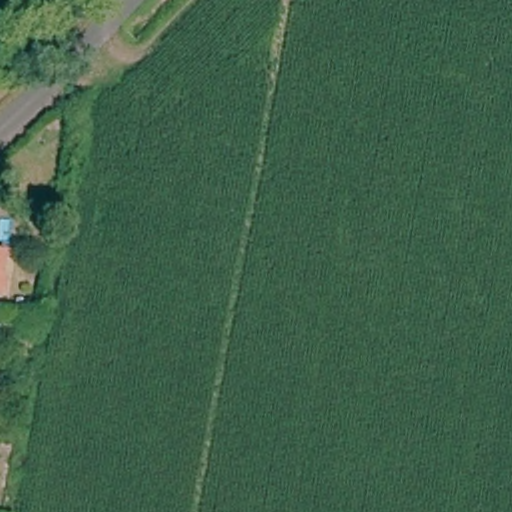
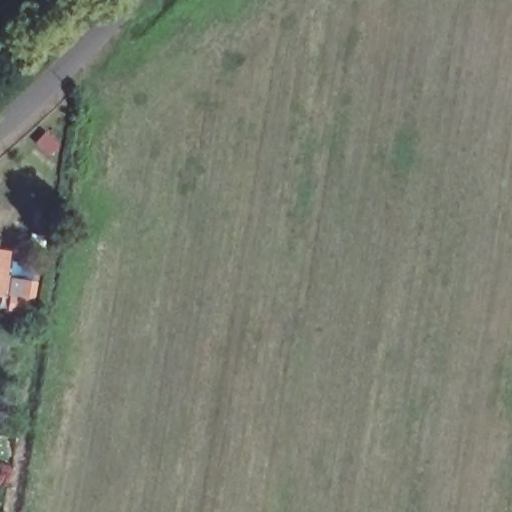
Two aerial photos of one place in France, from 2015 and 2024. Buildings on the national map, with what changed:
unchanged [(0,293),(0,254),(6,255),(1,293),(0,293)]
unchanged [(32,299),(31,311),(16,309),(17,298),(32,299)]

